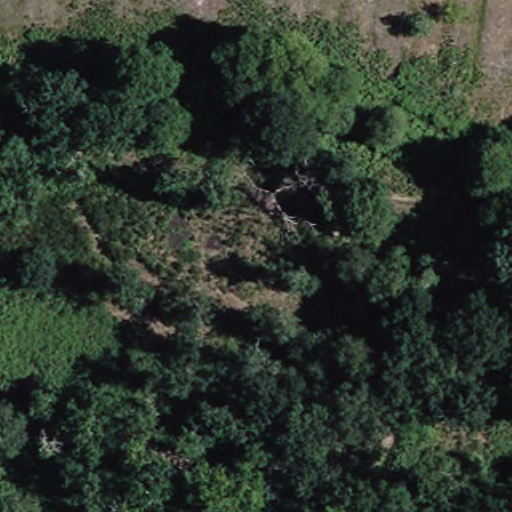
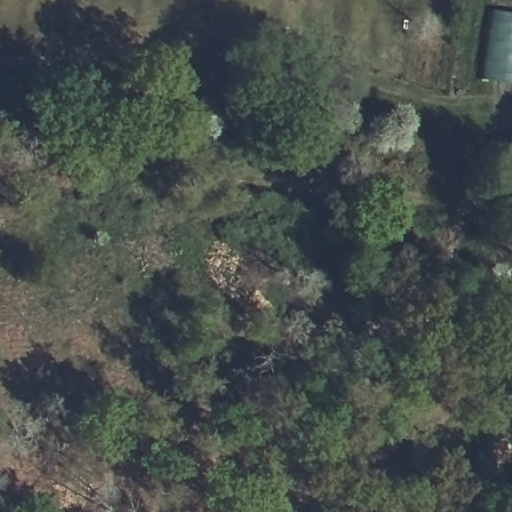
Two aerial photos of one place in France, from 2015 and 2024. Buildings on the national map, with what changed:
new [(512,14),(512,84),(482,79),(492,11),(512,14)]

